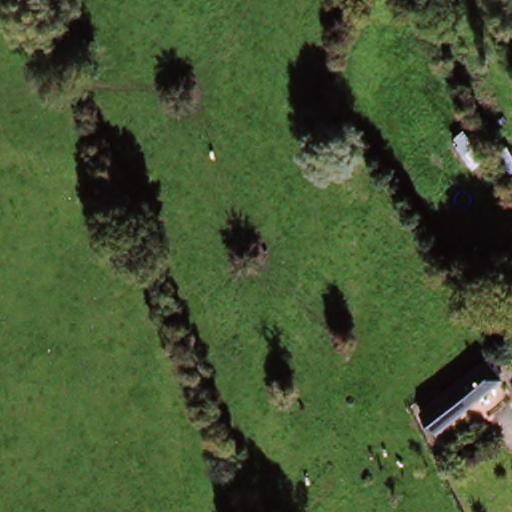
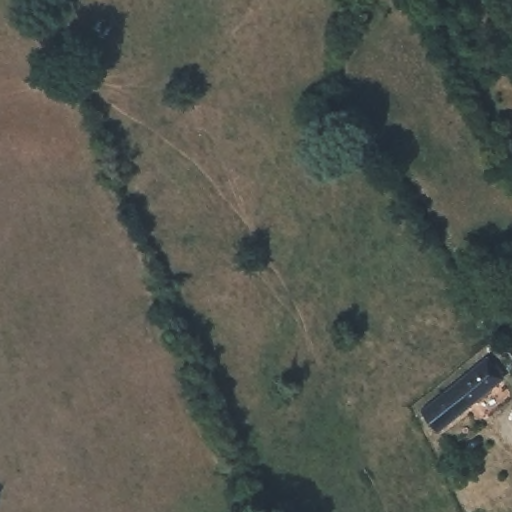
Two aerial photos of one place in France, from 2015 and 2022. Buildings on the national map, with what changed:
unchanged [(435,434),(415,407),(470,363),(492,391),(435,434)]

